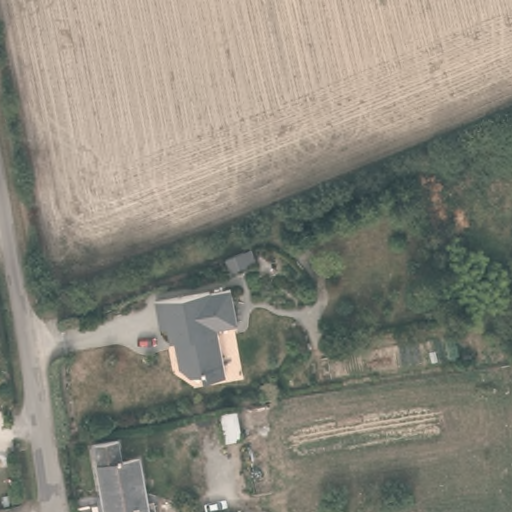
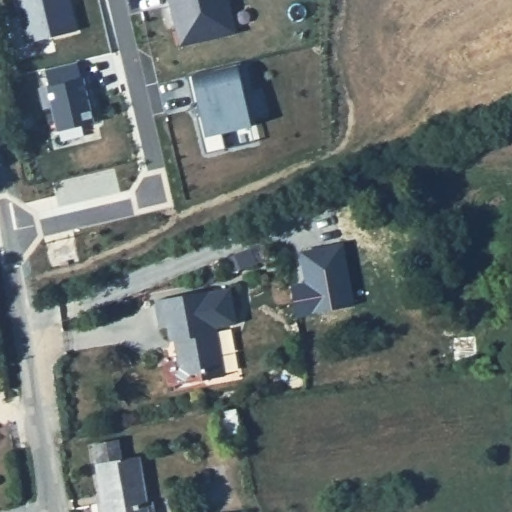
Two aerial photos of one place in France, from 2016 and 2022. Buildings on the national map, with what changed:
new [(77,31),(28,42),(18,0),(70,0),(77,31)]
new [(237,34),(181,46),(170,0),(229,0),(237,34)]
new [(46,69),(77,62),(81,79),(84,78),(88,77),(92,93),(98,121),(58,131),(52,106),(45,108),(40,88),(50,86),(46,69)]
new [(241,63),(248,91),(244,92),(252,127),(223,133),(227,149),(206,154),(197,116),(202,115),(199,102),(194,104),(187,76),(241,63)]
unchanged [(174,337),(171,323),(164,324),(157,297),(211,285),(211,286),(231,282),(239,317),(219,321),(230,369),(209,374),(208,367),(196,370),(185,363),(182,350),(178,336),(174,337)]
unchanged [(111,512),(108,495),(101,496),(92,448),(113,443),(118,463),(137,461),(146,512),(111,512)]

